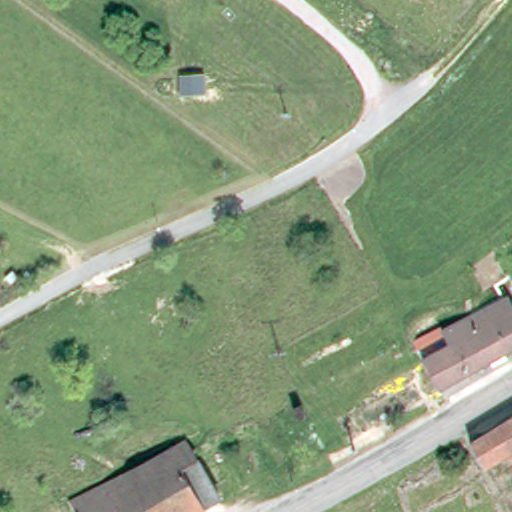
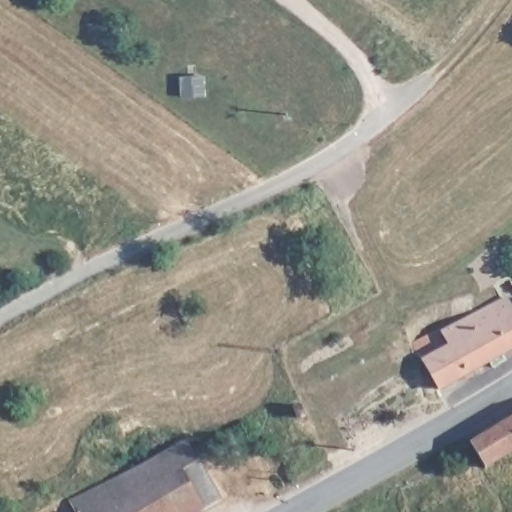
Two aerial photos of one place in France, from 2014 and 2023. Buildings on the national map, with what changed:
unchanged [(494,368),(490,362),(440,390),(424,363),(415,347),(444,332),(510,299),(512,304),(512,351),(505,355),(508,361),(494,368)]
unchanged [(299,406),(305,417),(297,421),(292,410),(299,406)]
unchanged [(274,435),(269,423),(277,420),(282,431),(274,435)]
unchanged [(472,446),(512,420),(512,453),(486,470),(472,446)]
unchanged [(198,433),(210,453),(217,450),(230,471),(240,487),(197,512),(83,512),(75,498),(147,463),(198,433)]

